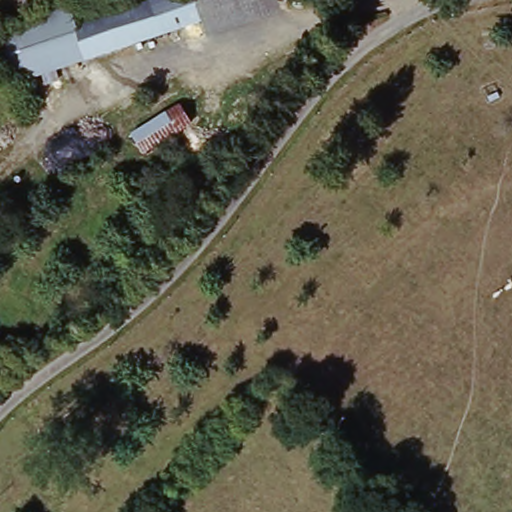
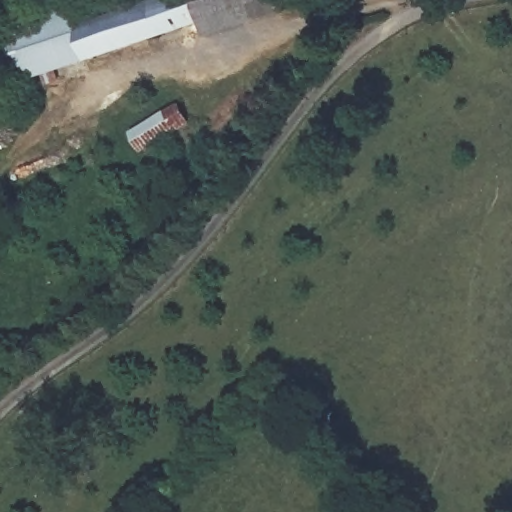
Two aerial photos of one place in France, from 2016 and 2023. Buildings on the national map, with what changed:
unchanged [(70,19),(74,32),(168,0),(190,0),(201,29),(86,67),(9,96),(5,76),(0,64),(0,45),(70,19)]
unchanged [(277,6),(201,29),(190,0),(275,0),(277,6)]
unchanged [(130,146),(163,125),(178,116),(190,136),(176,145),(141,167),(130,146)]

